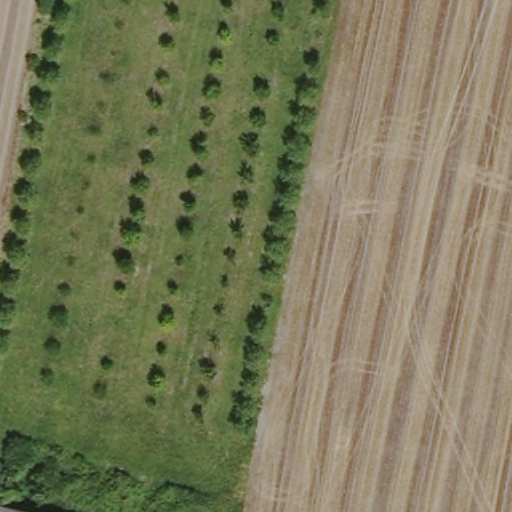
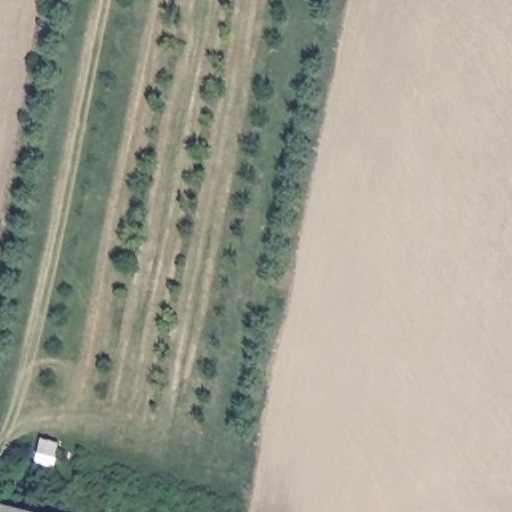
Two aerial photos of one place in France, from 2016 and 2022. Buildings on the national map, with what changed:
unchanged [(31,512),(0,512),(0,503),(31,512)]

